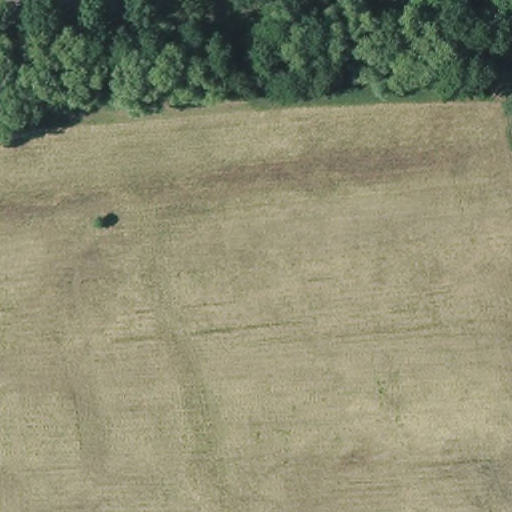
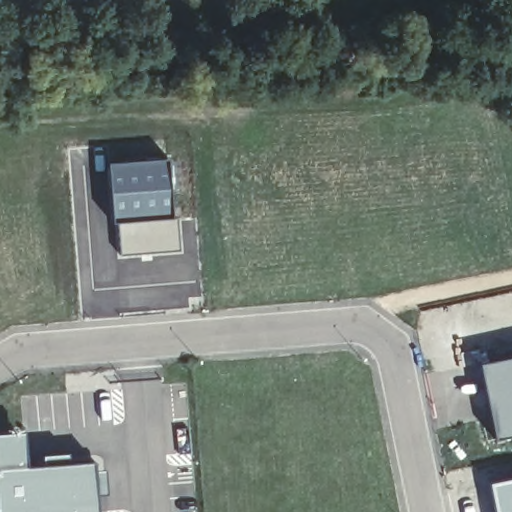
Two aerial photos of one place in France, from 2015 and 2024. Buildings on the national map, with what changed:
new [(167,156),(170,215),(115,218),(112,219),(106,160),(167,156)]
new [(170,215),(178,214),(182,249),(119,255),(115,218),(170,215)]
new [(512,435),(493,439),(477,363),(512,355),(512,435)]
new [(25,433),(27,469),(95,464),(98,512),(0,512),(0,434),(25,433)]
new [(512,512),(494,512),(487,481),(512,476),(512,512)]

